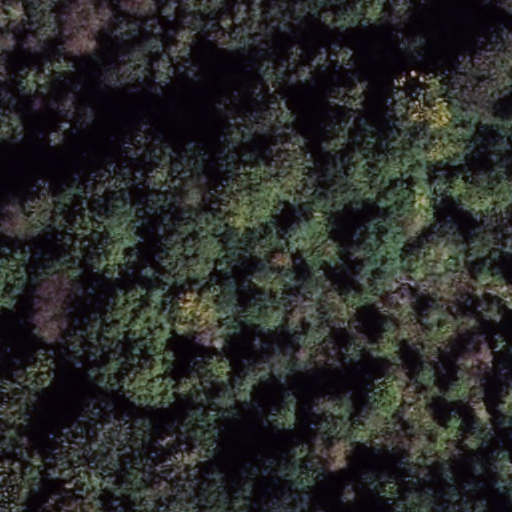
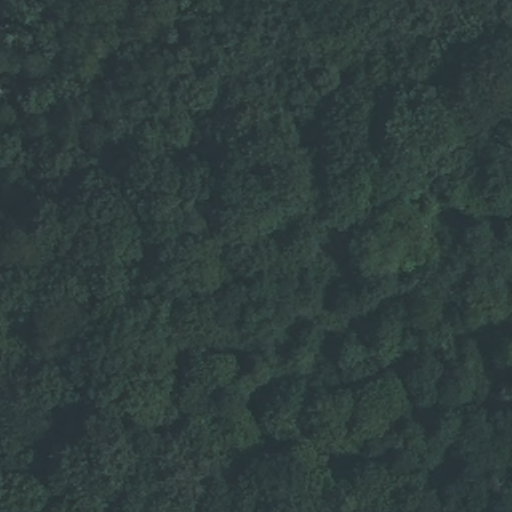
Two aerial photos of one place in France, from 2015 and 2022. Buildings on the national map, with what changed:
unchanged [(345,214),(407,183),(419,209),(359,239),(345,214)]

